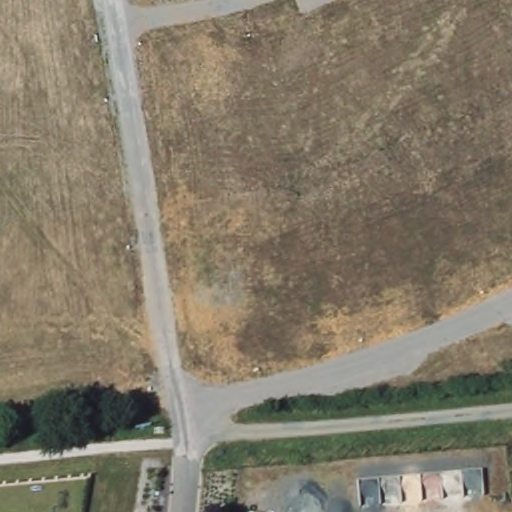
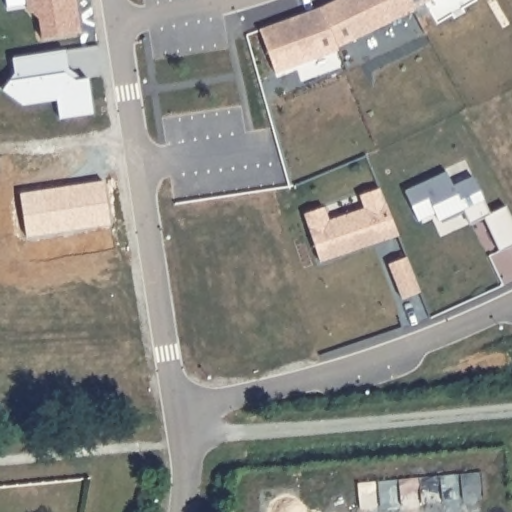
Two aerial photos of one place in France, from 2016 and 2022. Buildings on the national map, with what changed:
new [(407,0),(412,9),(337,49),(320,7),(335,0),(407,0)]
new [(407,0),(428,0),(412,9),(407,0)]
new [(320,7),(337,49),(275,72),(259,29),(320,7)]
new [(14,72),(11,57),(62,49),(65,68),(80,78),(87,78),(92,113),(59,118),(56,99),(22,104),(2,89),(14,72)]
new [(442,174),(450,188),(469,178),(488,214),(505,205),(512,219),(512,245),(500,252),(482,218),(468,225),(460,211),(437,223),(433,216),(417,224),(401,196),(442,174)]
new [(321,210),(326,224),(365,208),(359,195),(378,187),(397,234),(320,265),(301,218),(321,210)]
new [(406,256),(420,290),(401,298),(388,263),(406,256)]

